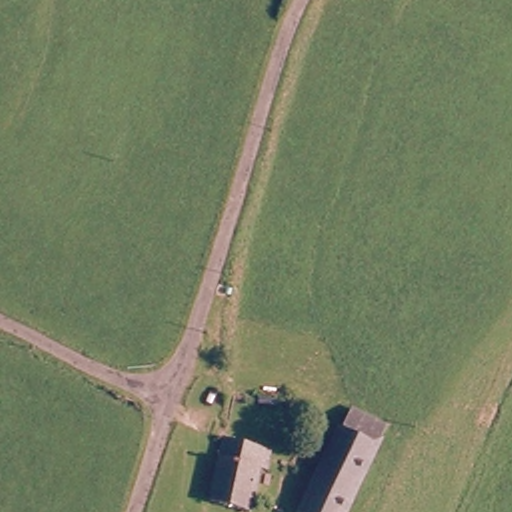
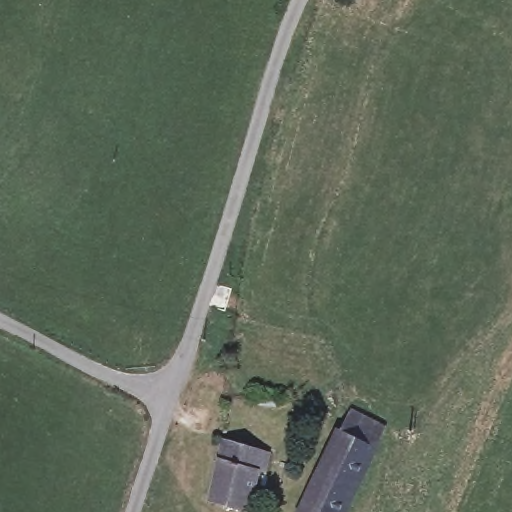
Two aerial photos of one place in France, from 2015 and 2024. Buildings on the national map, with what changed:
unchanged [(397,428),(354,512),(303,512),(358,408),(397,428)]
unchanged [(230,436),(265,443),(262,459),(266,459),(256,495),(254,502),(216,492),(230,436)]

